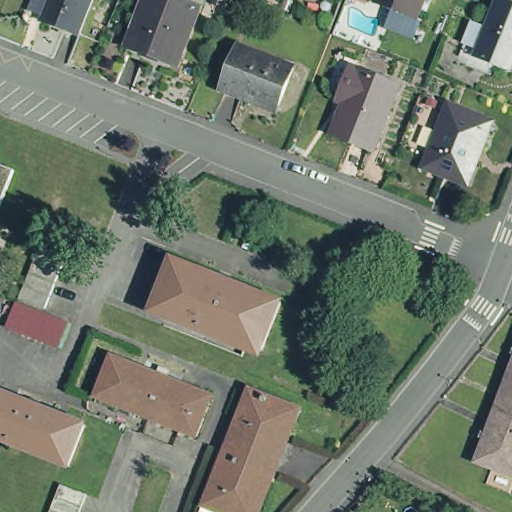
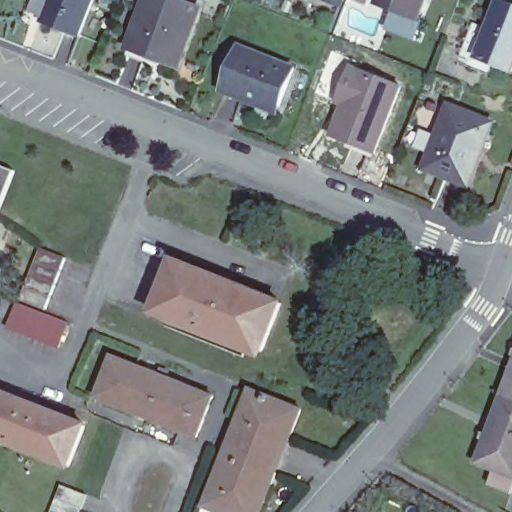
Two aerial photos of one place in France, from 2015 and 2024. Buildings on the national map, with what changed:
unchanged [(46,29),(58,0),(100,0),(82,43),(46,29)]
unchanged [(132,53),(148,14),(153,0),(162,0),(170,3),(203,16),(181,72),(132,53)]
unchanged [(381,6),(384,0),(430,0),(421,21),(425,23),(418,41),(390,30),(398,12),(381,6)]
unchanged [(512,5),(512,73),(480,60),(503,1),(512,5)]
unchanged [(256,103),(231,93),(248,49),(303,70),(289,108),(286,115),(256,103)]
unchanged [(379,154),(337,138),(350,106),(343,105),(350,90),(357,71),(363,73),(405,89),(379,154)]
unchanged [(465,186),(429,171),(454,108),(498,125),(487,151),(472,189),(465,186)]
unchanged [(2,220),(0,219),(0,165),(20,174),(2,220)]
unchanged [(23,302),(30,287),(43,249),(68,259),(53,296),(47,312),(23,302)]
unchanged [(176,261),(282,304),(262,353),(247,347),(246,350),(168,320),(170,316),(155,310),(176,261)]
unchanged [(20,306),(70,325),(60,351),(10,330),(20,306)]
unchanged [(114,355),(218,395),(200,435),(98,395),(114,355)]
unchanged [(505,396),(512,377),(512,399),(505,396)]
unchanged [(246,419),(240,417),(251,387),(303,406),(290,437),(284,434),(246,419)]
unchanged [(71,463),(0,435),(0,389),(87,424),(71,463)]
unchanged [(478,464),(505,396),(512,399),(512,477),(478,464)]
unchanged [(233,452),(246,419),(284,434),(271,467),(233,452)]
unchanged [(205,504),(226,449),(233,452),(271,467),(277,470),(260,512),(201,512),(205,504)]
unchanged [(87,512),(54,512),(64,487),(92,498),(87,512)]

